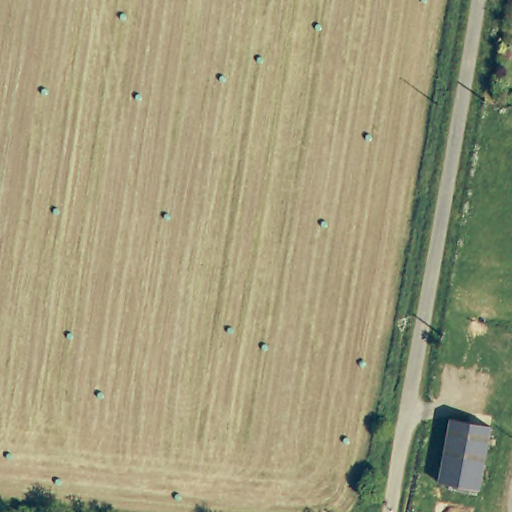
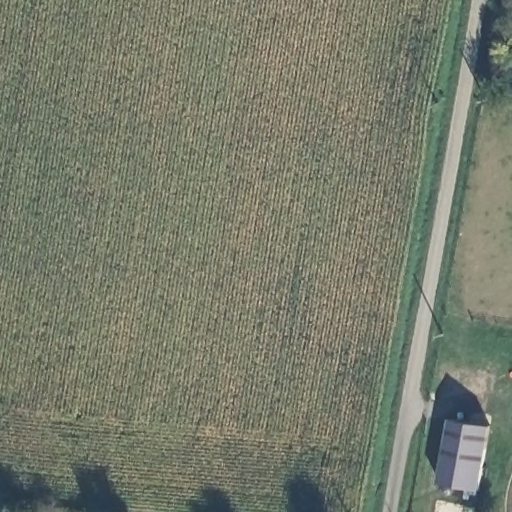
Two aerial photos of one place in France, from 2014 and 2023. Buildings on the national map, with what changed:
unchanged [(452,421),(492,427),(483,492),(443,486),(452,421)]

